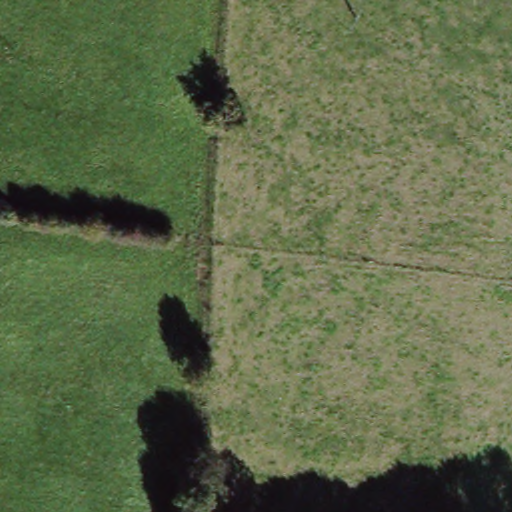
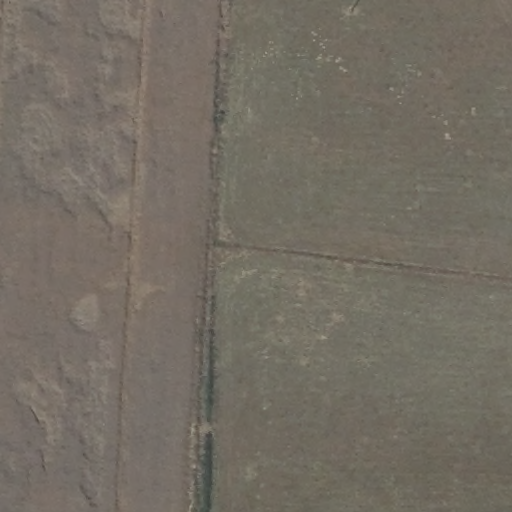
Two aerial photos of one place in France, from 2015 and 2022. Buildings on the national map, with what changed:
[]

